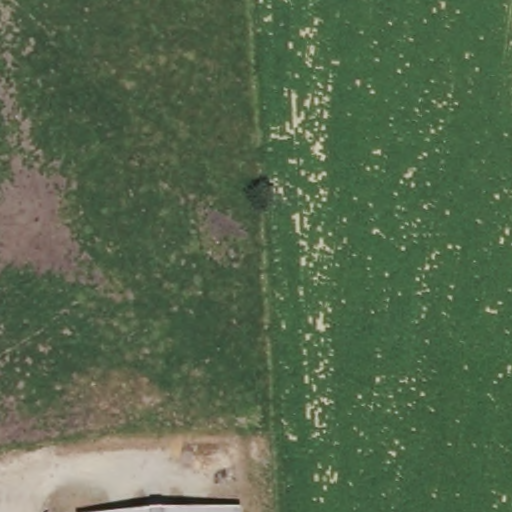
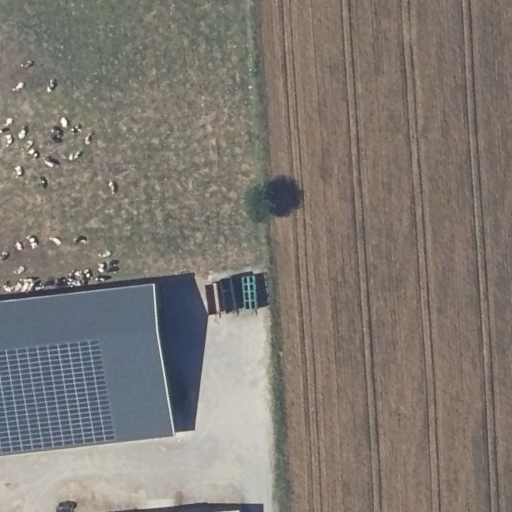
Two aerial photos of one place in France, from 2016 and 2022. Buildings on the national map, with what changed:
new [(177,435),(0,455),(0,301),(161,282),(177,435)]
unchanged [(243,512),(207,512),(242,510),(243,512)]

